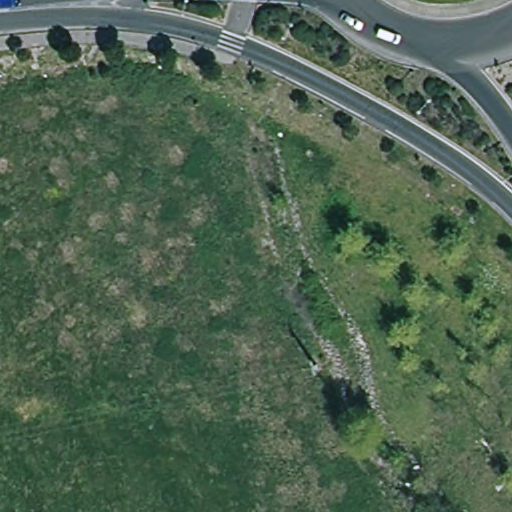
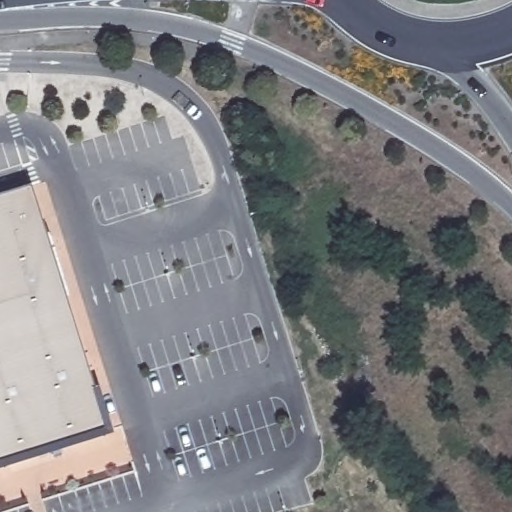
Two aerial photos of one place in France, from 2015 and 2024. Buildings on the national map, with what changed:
new [(99,387),(114,434),(0,470),(0,197),(32,187),(95,388),(99,387)]

